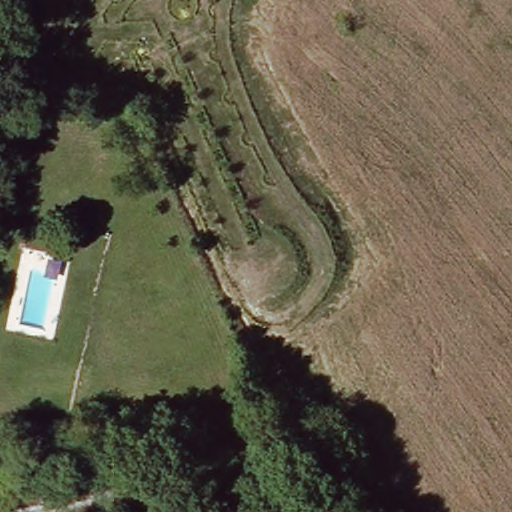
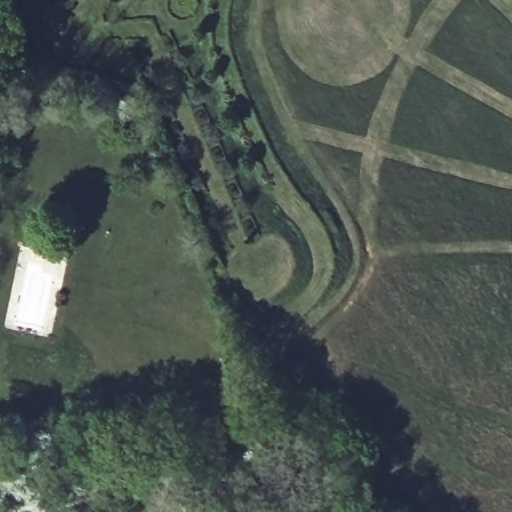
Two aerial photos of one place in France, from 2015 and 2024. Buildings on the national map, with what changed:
[]

